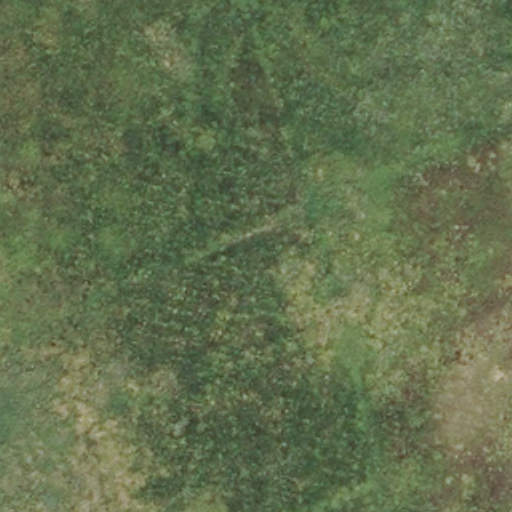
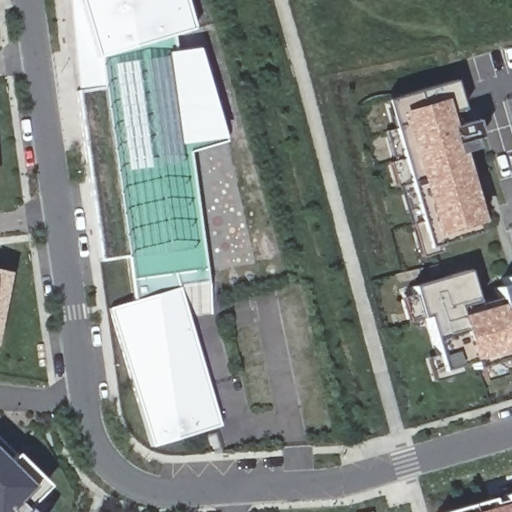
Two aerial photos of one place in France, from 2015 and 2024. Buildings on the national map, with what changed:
new [(168,35),(170,52),(200,49),(221,136),(224,142),(188,152),(207,282),(178,287),(219,424),(154,446),(109,310),(135,301),(127,257),(100,261),(77,91),(102,89),(95,58),(77,0),(183,0),(191,28),(168,35)]
new [(388,95),(448,79),(456,109),(447,111),(450,125),(472,119),(477,136),(469,138),(471,147),(452,151),(473,231),(418,246),(387,126),(396,124),(388,95)]
new [(498,296),(496,288),(505,286),(502,277),(512,274),(512,358),(480,367),(475,369),(473,362),(442,370),(427,316),(421,318),(412,286),(468,271),(477,303),(498,296)]
new [(512,368),(494,373),(495,377),(483,380),(480,367),(512,358),(512,368)]
new [(3,464),(14,455),(45,487),(24,510),(25,512),(0,512),(0,461),(3,464)]
new [(512,512),(436,512),(512,490),(512,512)]

